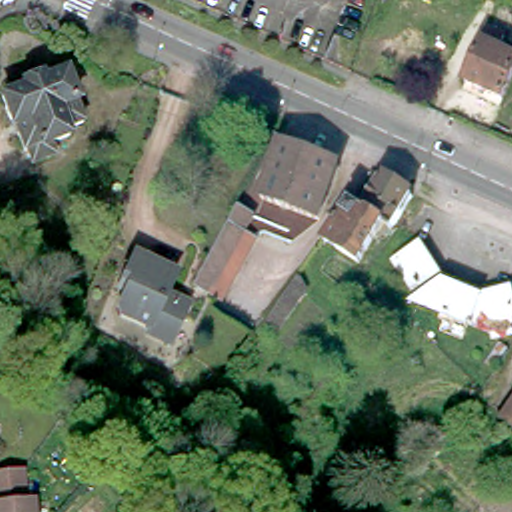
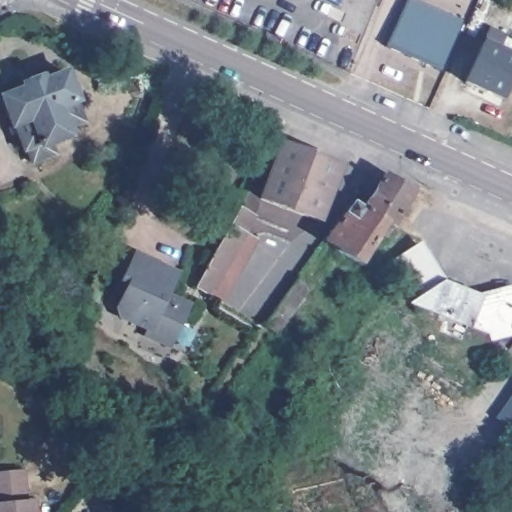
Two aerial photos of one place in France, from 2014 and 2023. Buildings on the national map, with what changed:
new [(461,22),(440,70),(387,46),(408,0),(412,0),(461,22)]
unchanged [(506,35),(500,49),(512,54),(512,74),(502,96),(467,80),(485,42),(491,27),(506,35)]
unchanged [(23,80),(22,76),(45,67),(47,71),(67,62),(80,94),(77,95),(84,113),(67,119),(70,125),(52,133),(56,144),(34,153),(30,142),(27,142),(17,119),(15,120),(2,87),(23,80)]
unchanged [(338,163),(319,216),(262,192),(282,141),(338,163)]
unchanged [(353,193),(365,201),(383,171),(412,188),(395,217),(383,212),(358,251),(338,238),(327,230),(353,193)]
unchanged [(206,267),(238,209),(255,218),(210,296),(194,288),(206,267)]
unchanged [(179,272),(171,293),(193,302),(171,347),(145,337),(147,330),(115,317),(125,285),(119,282),(135,252),(179,272)]
unchanged [(475,302),(505,295),(512,318),(512,322),(508,323),(512,337),(487,343),(485,339),(408,307),(413,303),(392,268),(415,252),(440,289),(475,302)]
unchanged [(299,278),(303,278),(310,292),(280,333),(265,326),(299,278)]
unchanged [(482,432),(512,388),(512,454),(510,456),(482,432)]
unchanged [(20,501),(30,501),(30,512),(0,512),(0,471),(18,471),(20,501)]

